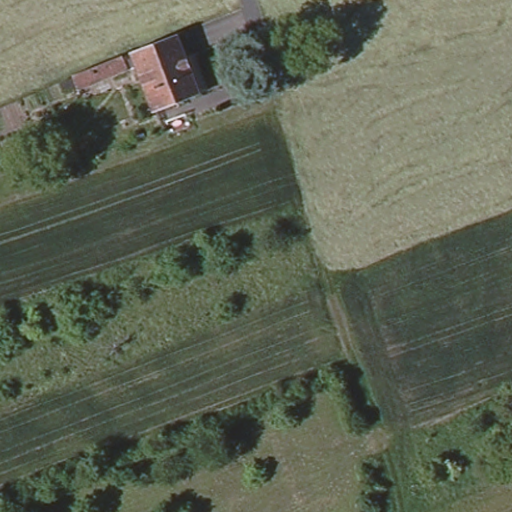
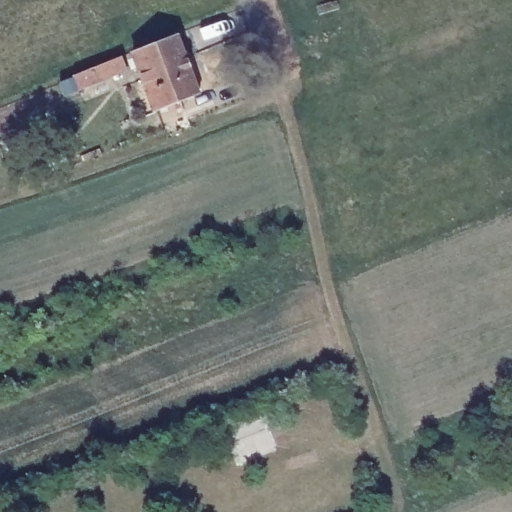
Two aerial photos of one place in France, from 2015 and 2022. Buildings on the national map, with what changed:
unchanged [(154,115),(138,72),(131,55),(176,37),(183,55),(199,97),(154,115)]
unchanged [(58,86),(72,80),(71,79),(121,59),(126,73),(77,93),(76,91),(62,96),(58,86)]
unchanged [(42,108),(55,140),(44,146),(30,114),(42,108)]

